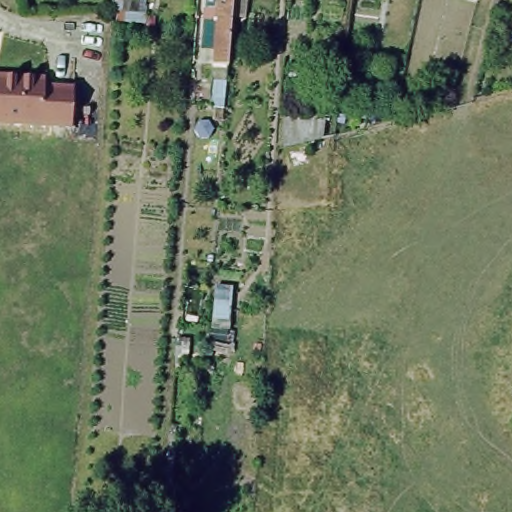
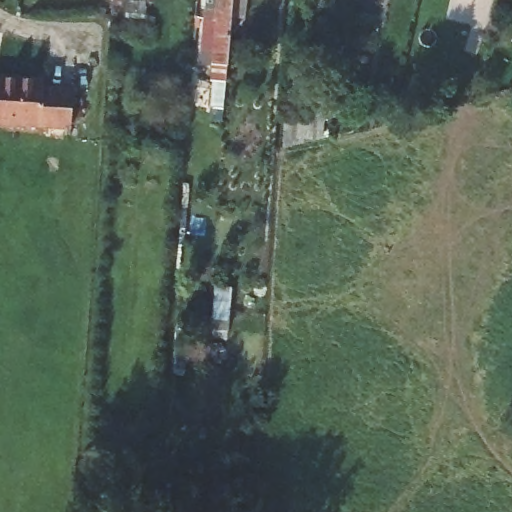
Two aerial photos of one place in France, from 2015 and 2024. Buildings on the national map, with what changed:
unchanged [(146,3),(145,17),(111,15),(112,0),(123,0),(122,1),(146,3)]
unchanged [(231,12),(226,76),(210,75),(214,23),(204,22),(206,0),(246,0),(245,14),(231,12)]
unchanged [(42,88),(72,90),(68,129),(0,124),(0,77),(43,80),(42,88)]
unchanged [(277,143),(279,111),(317,114),(315,133),(277,143)]

